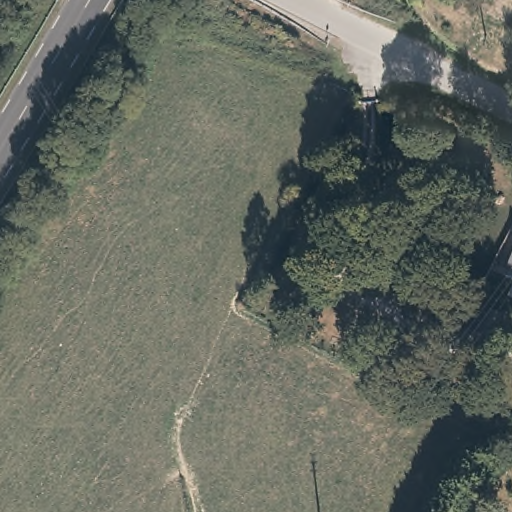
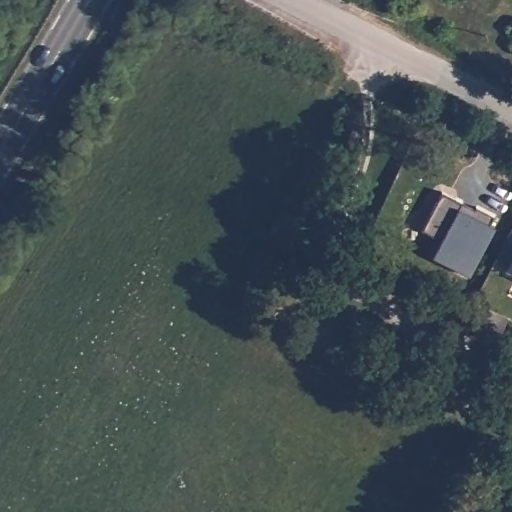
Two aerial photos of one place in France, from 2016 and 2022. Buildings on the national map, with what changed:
new [(441,240),(421,229),(442,191),(475,209),(476,206),(493,215),(489,223),(496,227),(469,276),(432,257),(441,240)]
unchanged [(512,257),(512,278),(502,273),(512,257)]
unchanged [(445,316),(486,345),(471,365),(430,336),(445,316)]

